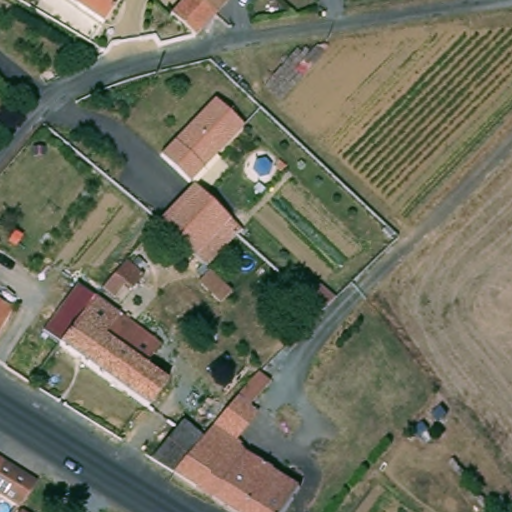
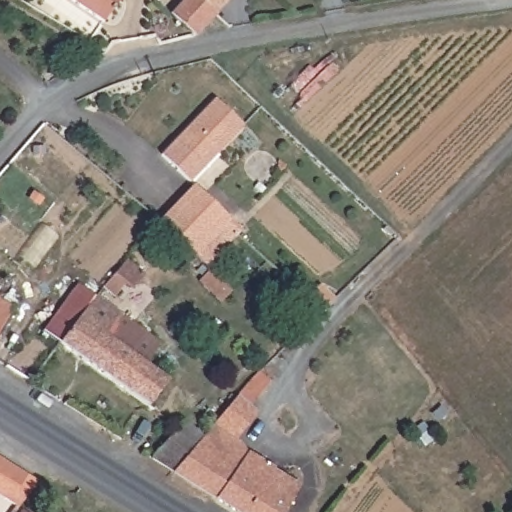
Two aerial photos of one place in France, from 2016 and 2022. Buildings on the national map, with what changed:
unchanged [(102,23),(70,0),(118,0),(114,6),(102,23)]
unchanged [(204,0),(219,14),(197,37),(195,38),(174,18),(191,0),(204,0)]
unchanged [(204,0),(233,0),(219,14),(204,0)]
unchanged [(212,99),(241,124),(189,181),(187,180),(161,156),(212,99)]
unchanged [(192,184),(241,229),(236,235),(236,236),(208,265),(207,265),(159,222),(192,184)]
unchanged [(125,257),(144,272),(132,286),(131,286),(125,281),(108,302),(160,339),(145,360),(167,376),(148,403),(58,338),(56,336),(42,326),(43,324),(55,309),(75,284),(92,295),(103,283),(125,257)]
unchanged [(202,264),(230,292),(229,294),(220,303),(191,275),(202,264)]
unchanged [(11,304),(0,323),(0,297),(11,304)]
unchanged [(238,394),(246,383),(258,371),(269,382),(248,404),(237,394),(238,394)]
unchanged [(183,416),(202,434),(173,468),(152,454),(183,416)]
unchanged [(212,421),(221,427),(244,442),(248,448),(274,464),(274,466),(300,483),(282,512),(245,512),(173,468),(202,434),(212,421)]
unchanged [(39,479),(12,512),(0,512),(0,454),(39,479)]

